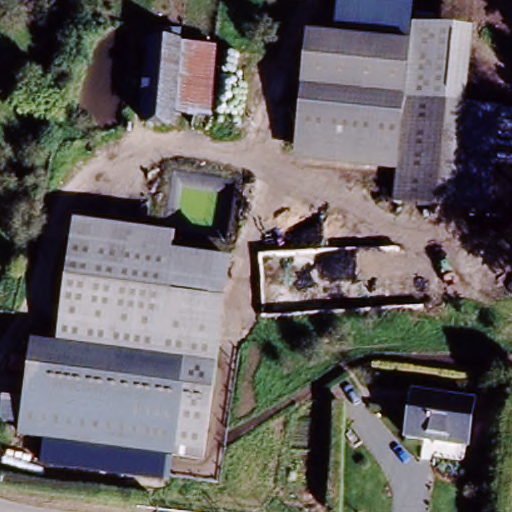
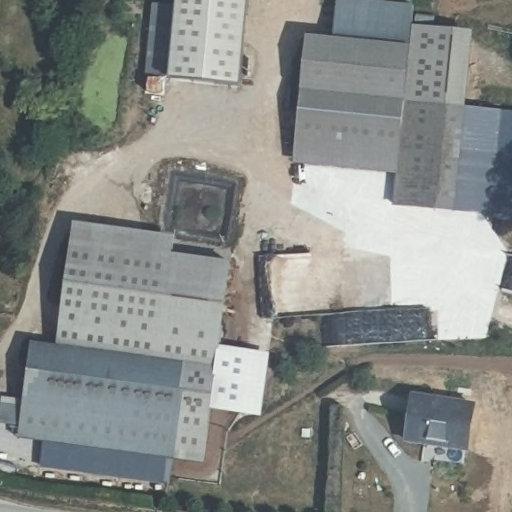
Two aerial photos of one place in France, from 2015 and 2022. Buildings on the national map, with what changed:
new [(236,86),(165,79),(173,8),(173,0),(245,0),(236,86)]
unchanged [(414,5),(407,101),(500,114),(491,216),(391,209),(393,175),(293,170),(309,30),(334,33),(334,0),(357,0),(414,5)]
new [(165,79),(143,76),(150,5),(173,8),(165,79)]
unchanged [(464,109),(426,104),(407,101),(412,26),(413,15),(434,17),(434,29),(472,33),(464,109)]
demolished [(192,74),(171,71),(173,45),(160,43),(161,31),(182,33),(180,47),(215,50),(210,120),(190,119),(192,74)]
demolished [(167,127),(135,125),(143,41),(173,45),(171,71),(167,120),(167,127)]
unchanged [(491,216),(500,114),(512,115),(512,223),(488,220),(488,216),(491,216)]
unchanged [(78,221),(180,235),(182,252),(234,260),(210,460),(171,454),(181,364),(126,357),(63,350),(78,221)]
unchanged [(63,350),(126,357),(181,364),(171,454),(168,486),(35,467),(38,438),(14,431),(29,345),(63,350)]
new [(223,347),(270,355),(261,414),(215,412),(223,347)]
unchanged [(421,440),(403,438),(407,395),(466,402),(461,446),(461,458),(421,455),(421,440)]

